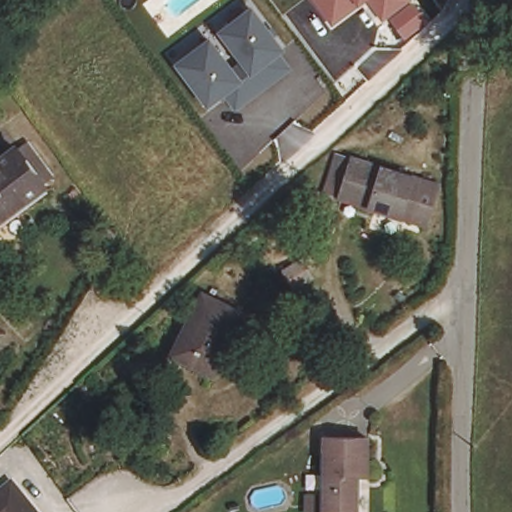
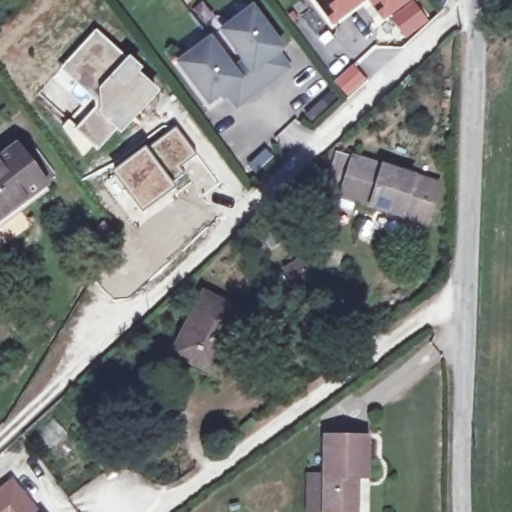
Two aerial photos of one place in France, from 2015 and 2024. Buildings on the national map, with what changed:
unchanged [(333,20),(318,0),(363,0),(360,2),(333,20)]
unchanged [(374,0),(406,0),(385,16),(374,0)]
new [(413,6),(425,22),(405,37),(392,21),(413,6)]
unchanged [(282,48),(277,51),(286,69),(235,104),(228,90),(210,102),(181,62),(210,41),(231,67),(243,59),(225,31),(254,10),(282,48)]
new [(95,28),(143,69),(140,72),(160,92),(118,136),(116,134),(96,153),(82,141),(78,145),(60,127),(68,120),(75,127),(95,106),(58,70),(95,28)]
new [(200,195),(189,181),(185,176),(175,184),(145,147),(175,126),(197,156),(217,182),(200,195)]
unchanged [(0,161),(13,152),(14,154),(24,147),(50,179),(39,187),(42,191),(0,220),(0,161)]
new [(145,147),(175,184),(178,187),(141,215),(110,174),(145,147)]
unchanged [(420,181),(438,189),(425,227),(369,207),(340,199),(325,194),(338,155),(351,159),(362,162),(420,181)]
unchanged [(237,306),(207,366),(168,346),(197,288),(237,306)]
unchanged [(322,509),(307,508),(307,495),(322,496),(322,434),(364,433),(365,472),(355,472),(355,512),(322,512),(322,509)]
unchanged [(0,494),(11,485),(35,512),(0,512),(0,494)]

